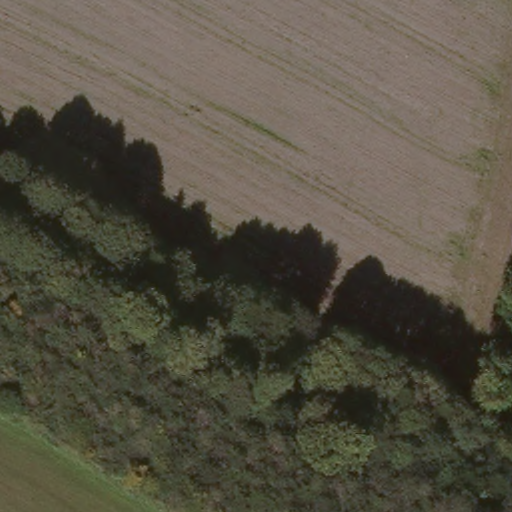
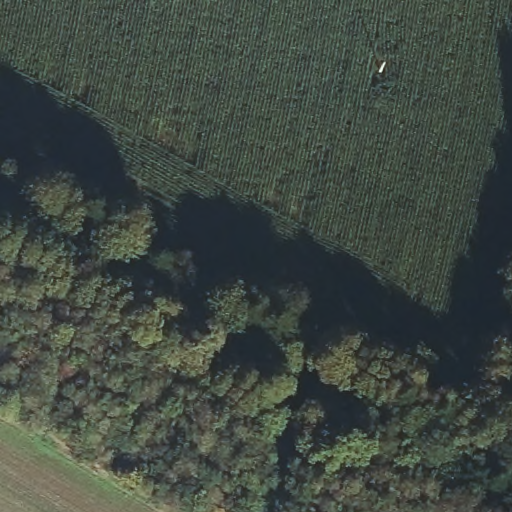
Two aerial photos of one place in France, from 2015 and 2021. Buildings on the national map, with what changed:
[]

